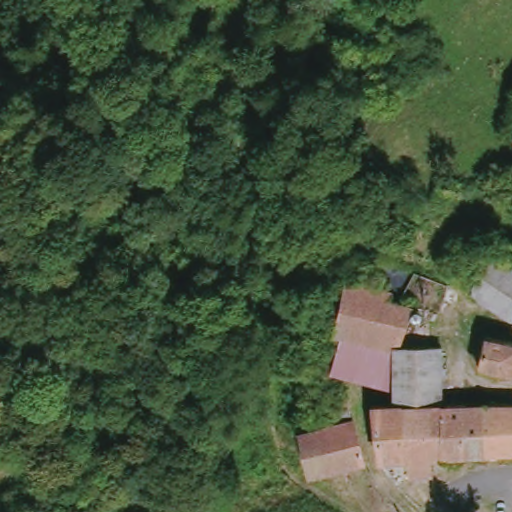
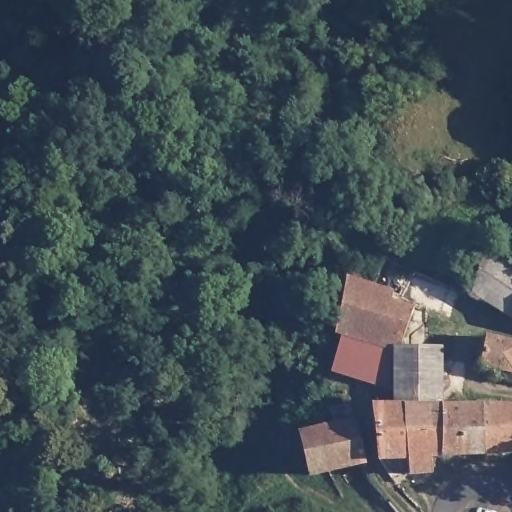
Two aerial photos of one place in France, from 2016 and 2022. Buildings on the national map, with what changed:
unchanged [(512,135),(512,141),(510,140),(512,135)]
unchanged [(472,287),(487,253),(512,266),(512,316),(511,319),(470,296),(472,287)]
unchanged [(351,279),(403,303),(396,344),(437,344),(437,406),(385,407),(385,389),(384,346),(342,337),(336,336),(351,279)]
unchanged [(511,319),(512,316),(512,326),(510,326),(511,319)]
unchanged [(495,368),(475,366),(478,335),(512,339),(512,379),(495,377),(495,368)]
unchanged [(384,346),(385,389),(333,376),(342,337),(384,346)]
unchanged [(512,452),(482,454),(480,406),(512,405),(512,452)]
unchanged [(385,407),(437,406),(438,457),(428,457),(430,472),(404,473),(404,458),(373,461),(369,407),(385,407)]
unchanged [(480,406),(482,454),(438,457),(437,406),(480,406)]
unchanged [(350,424),(362,463),(311,477),(300,437),(328,429),(350,424)]

